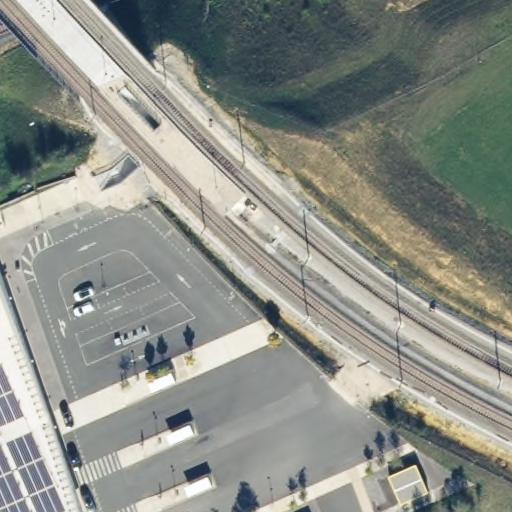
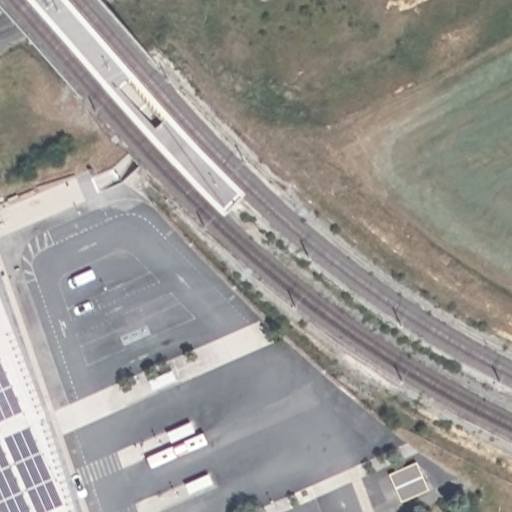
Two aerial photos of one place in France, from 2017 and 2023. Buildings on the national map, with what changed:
unchanged [(0,512),(0,281),(79,512),(0,512)]

